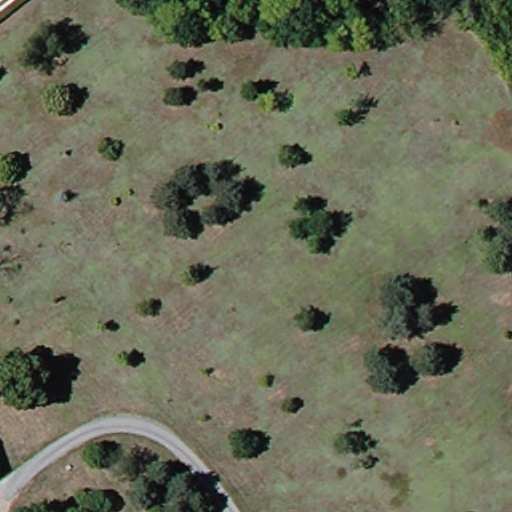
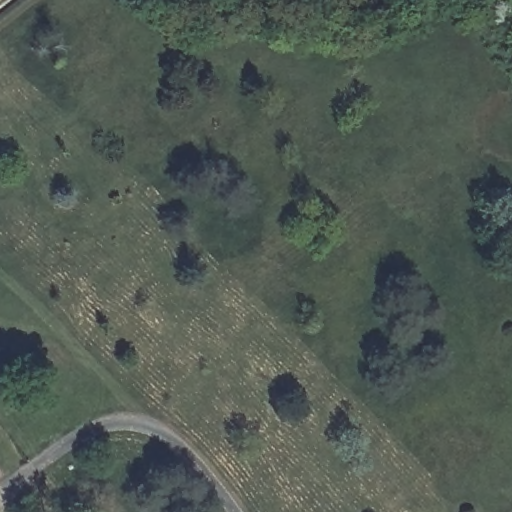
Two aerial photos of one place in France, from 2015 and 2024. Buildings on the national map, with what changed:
unchanged [(5,474),(0,478),(0,468),(5,474)]

